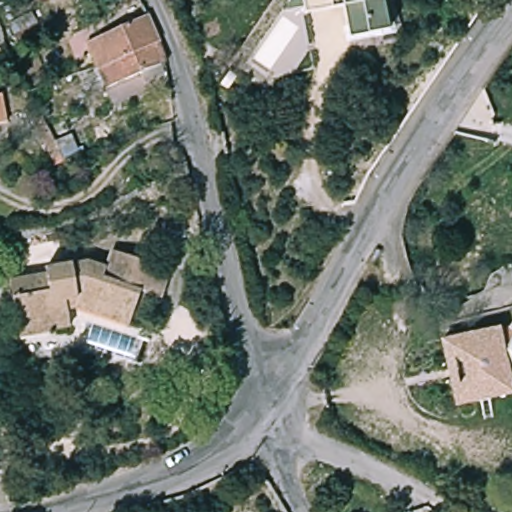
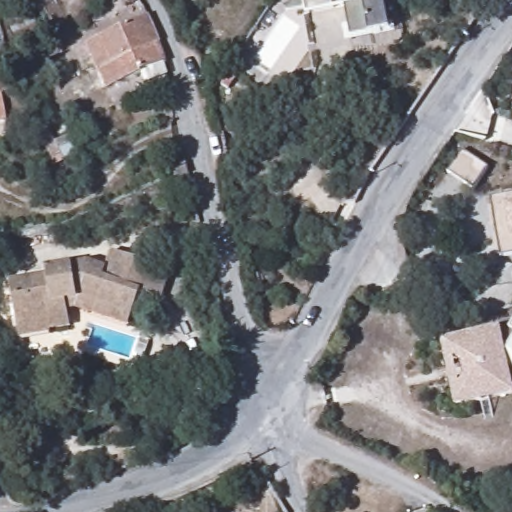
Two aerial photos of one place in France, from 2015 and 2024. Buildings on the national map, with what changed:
unchanged [(347,4),(309,12),(306,0),(385,0),(392,29),(352,37),(347,4)]
unchanged [(161,66),(105,90),(94,65),(99,62),(91,40),(136,23),(141,29),(148,24),(161,66)]
unchanged [(11,125),(0,127),(0,97),(6,96),(11,125)]
new [(500,257),(490,197),(512,194),(512,255),(500,257)]
unchanged [(17,332),(15,320),(11,293),(8,277),(45,269),(45,262),(82,254),(100,262),(108,245),(151,262),(161,265),(148,294),(139,291),(127,287),(118,308),(113,318),(66,298),(67,314),(47,319),(49,327),(17,332)]
unchanged [(496,332),(507,316),(504,314),(512,305),(512,366),(489,349),(482,353),(486,363),(496,360),(502,382),(449,399),(431,342),(492,322),(496,332)]

